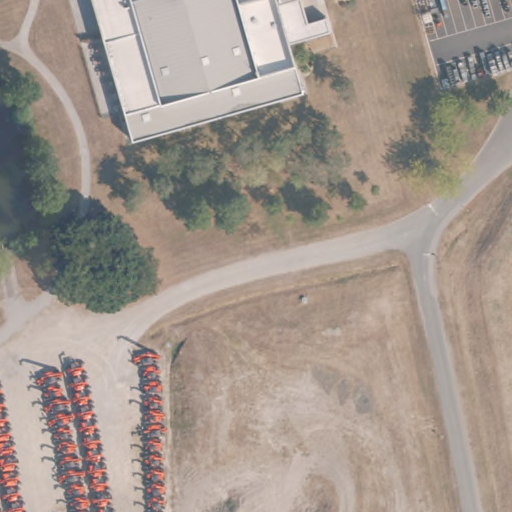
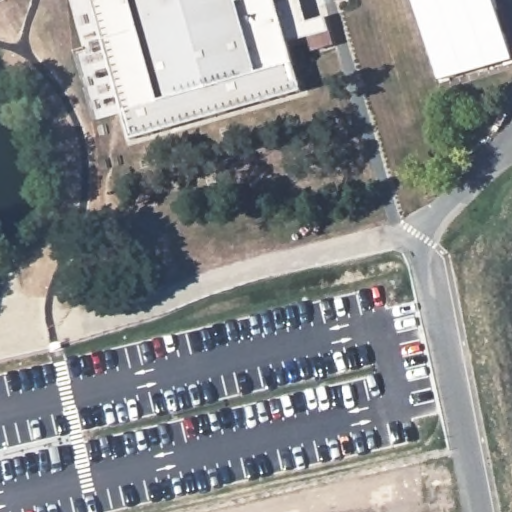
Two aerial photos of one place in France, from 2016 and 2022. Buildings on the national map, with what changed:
unchanged [(306,40),(282,45),(296,95),(123,135),(86,0),(295,0),(302,26),(321,20),(325,35),(306,40)]
new [(438,79),(416,0),(496,0),(512,58),(512,60),(438,79)]

